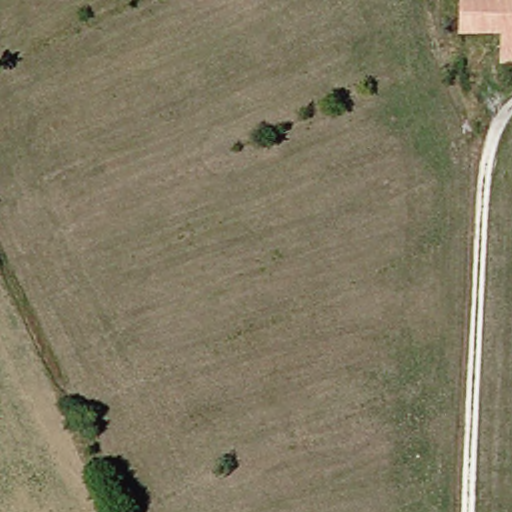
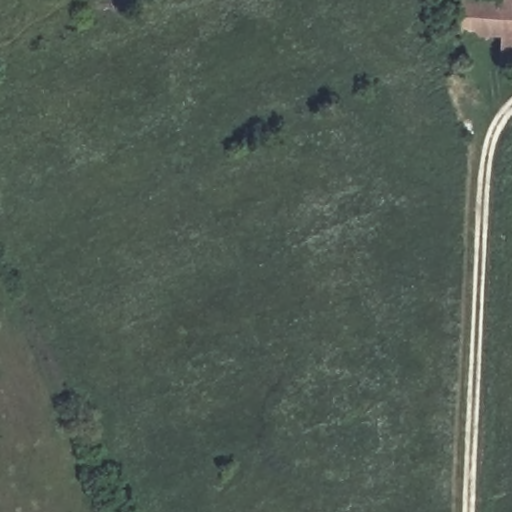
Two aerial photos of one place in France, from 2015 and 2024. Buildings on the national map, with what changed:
unchanged [(469,32),(469,0),(512,0),(512,32),(507,32),(469,32)]
unchanged [(507,32),(512,32),(512,62),(508,62),(507,32)]

